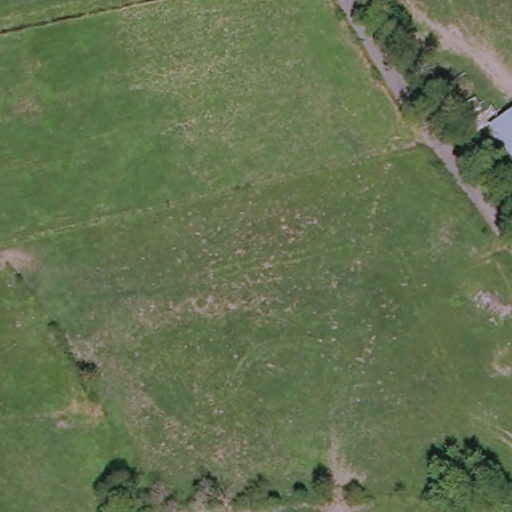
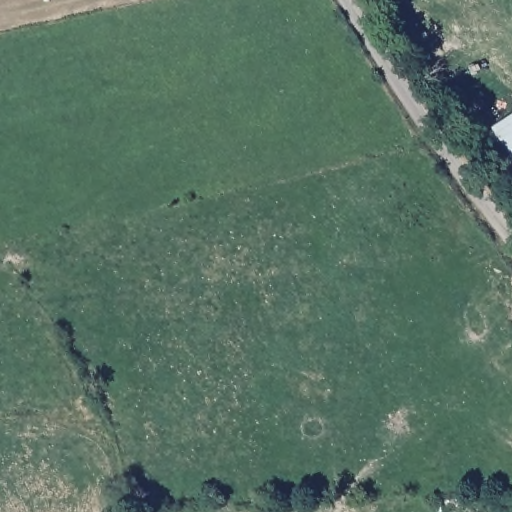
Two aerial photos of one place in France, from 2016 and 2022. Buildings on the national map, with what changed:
unchanged [(492,129),(512,114),(512,160),(492,129)]

